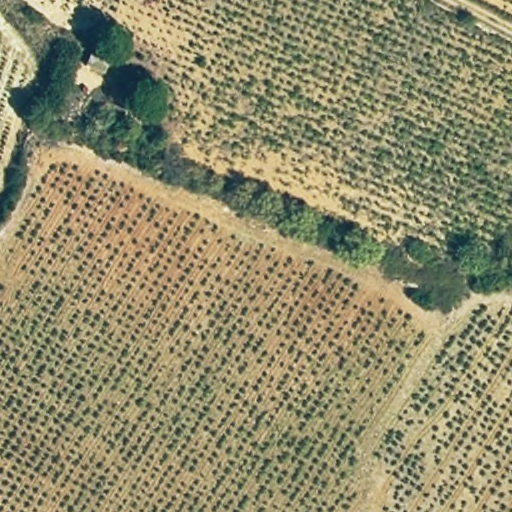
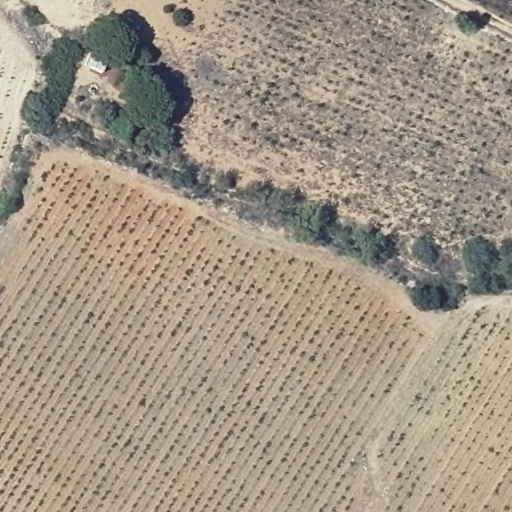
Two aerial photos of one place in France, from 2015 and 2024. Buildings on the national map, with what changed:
unchanged [(109,61),(100,75),(84,65),(91,52),(109,61)]

